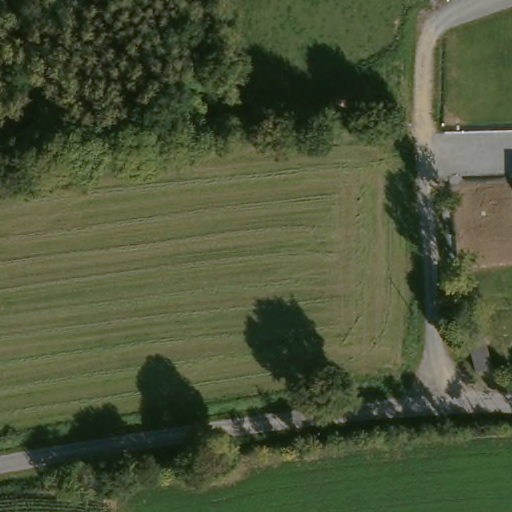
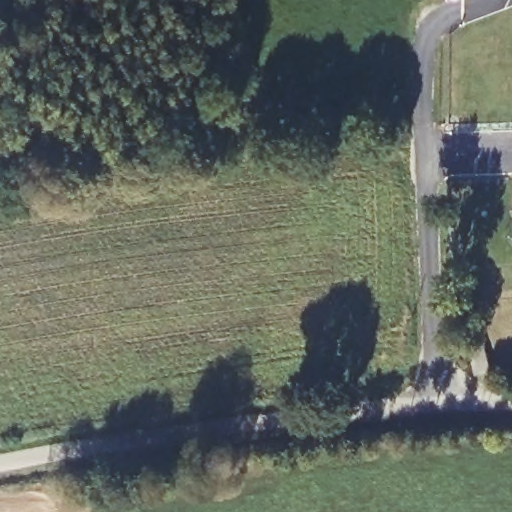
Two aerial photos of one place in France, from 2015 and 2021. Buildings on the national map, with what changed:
unchanged [(482,332),(490,365),(478,368),(469,335),(482,332)]

